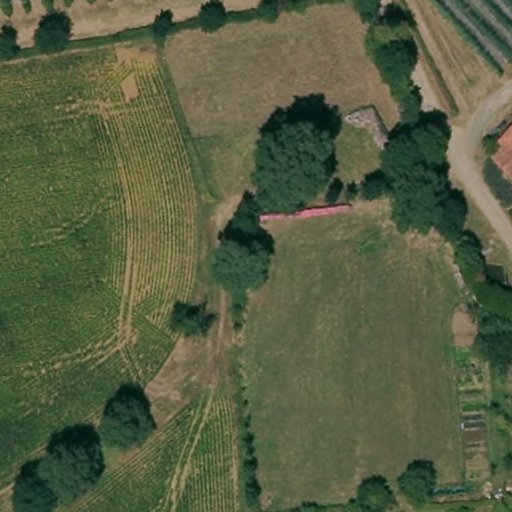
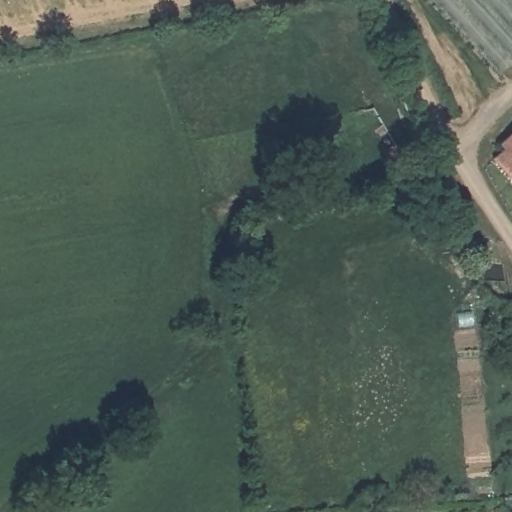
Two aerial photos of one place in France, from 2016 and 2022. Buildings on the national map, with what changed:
unchanged [(493,164),(500,154),(496,150),(512,133),(512,184),(493,164)]

